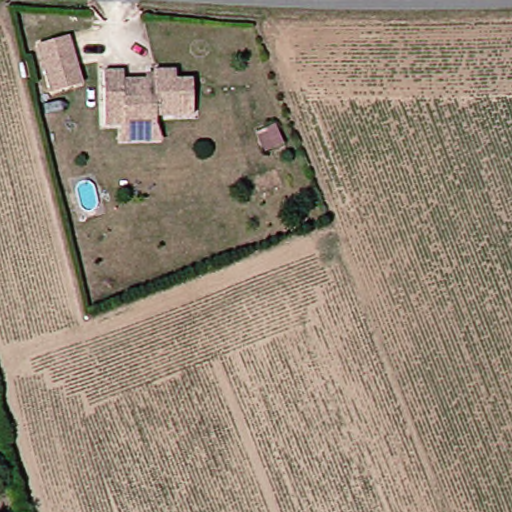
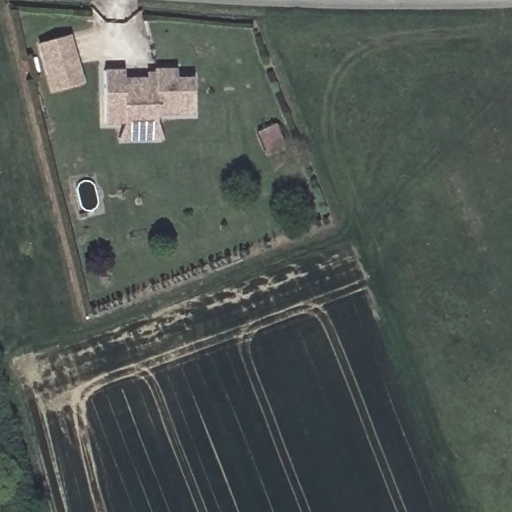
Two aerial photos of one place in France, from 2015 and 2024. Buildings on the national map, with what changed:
unchanged [(85,80),(55,90),(40,42),(69,34),(85,80)]
unchanged [(120,139),(123,120),(104,119),(105,102),(106,70),(125,71),(125,81),(157,80),(159,71),(181,73),(181,83),(195,83),(195,115),(161,115),(160,122),(161,141),(120,139)]

